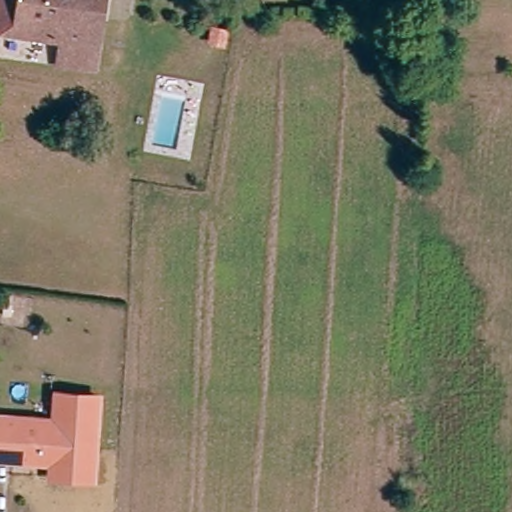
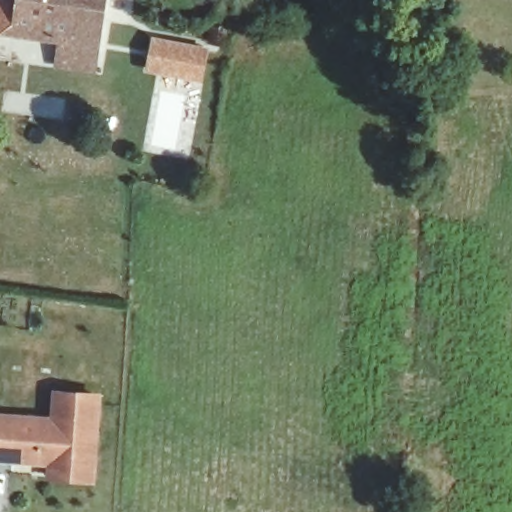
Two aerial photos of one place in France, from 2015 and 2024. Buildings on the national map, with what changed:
unchanged [(58,66),(59,55),(61,40),(0,33),(0,0),(104,0),(94,60),(93,72),(58,66)]
new [(211,46),(204,84),(145,73),(152,35),(211,46)]
unchanged [(0,459),(0,417),(59,421),(61,394),(102,397),(99,436),(97,466),(83,465),(41,461),(33,461),(0,459)]

